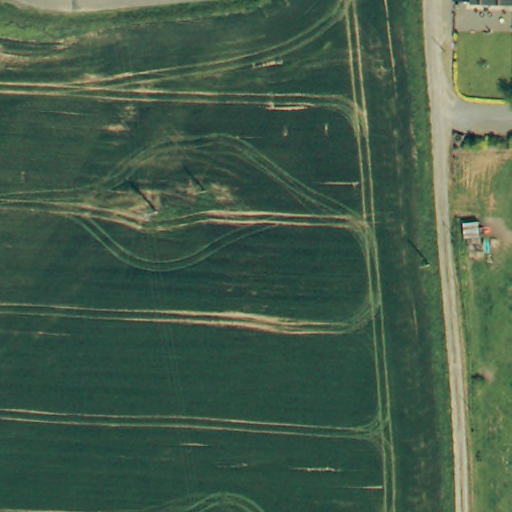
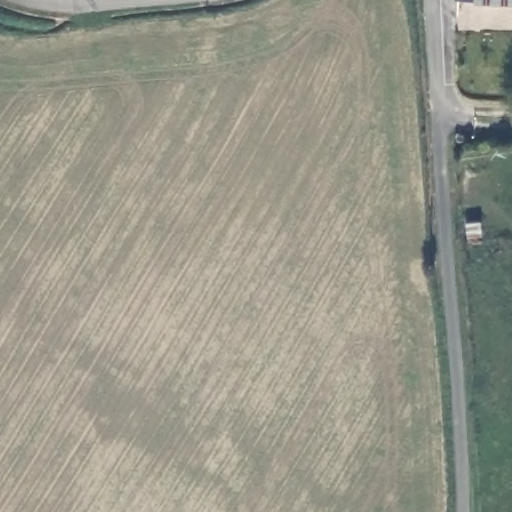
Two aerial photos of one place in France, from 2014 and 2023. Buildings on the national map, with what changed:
unchanged [(512,0),(512,5),(471,1),(471,0),(512,0)]

